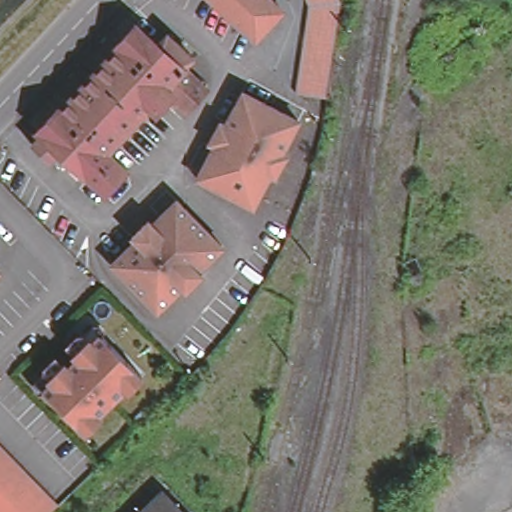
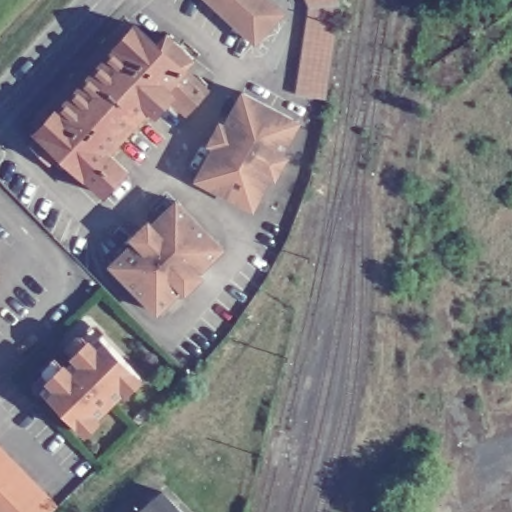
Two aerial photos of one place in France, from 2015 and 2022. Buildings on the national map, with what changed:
unchanged [(201,0),(265,0),(270,3),(276,9),(250,41),(201,0)]
unchanged [(340,3),(341,5),(340,13),(332,61),(325,101),(295,96),(310,8),(306,0),(339,0),(340,3)]
unchanged [(111,48),(110,46),(130,24),(152,44),(162,33),(188,57),(178,68),(201,89),(181,111),(165,96),(150,112),(143,106),(133,117),(87,74),(111,48)]
unchanged [(133,117),(101,152),(122,171),(100,196),(62,161),(55,169),(46,160),(44,162),(25,144),(34,135),(30,132),(52,108),(55,110),(87,74),(133,117)]
unchanged [(196,176),(214,143),(210,141),(221,120),(225,123),(244,90),(300,122),(281,154),(285,157),(274,177),(270,175),(251,207),(196,176)]
unchanged [(112,260),(138,236),(135,233),(151,217),(155,220),(180,197),(226,247),(201,270),(205,274),(188,290),(185,286),(160,310),(112,260)]
unchanged [(52,382),(50,379),(65,364),(74,374),(83,365),(75,355),(90,340),(92,343),(101,335),(142,377),(128,391),(125,388),(96,416),(99,419),(85,433),(43,391),(52,382)]
unchanged [(58,505),(51,512),(0,512),(0,446),(58,505)]
unchanged [(178,512),(137,512),(157,491),(178,512)]

